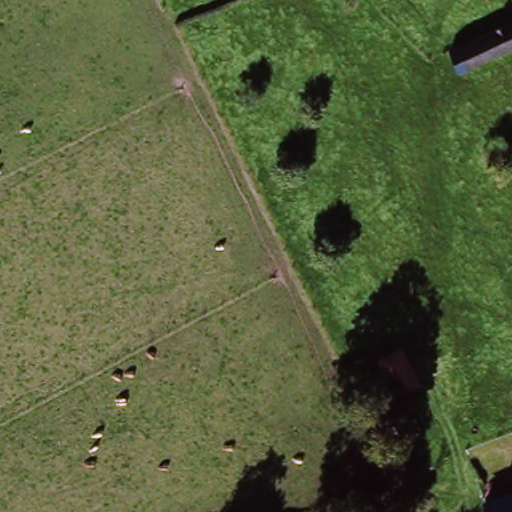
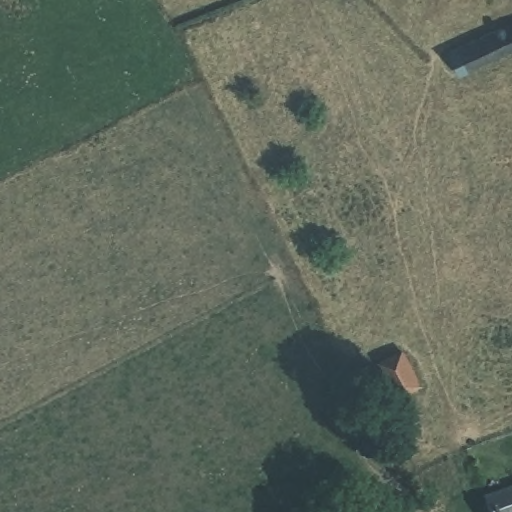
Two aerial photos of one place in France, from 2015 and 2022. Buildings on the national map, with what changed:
unchanged [(512,22),(512,52),(467,77),(454,54),(512,22)]
unchanged [(413,387),(401,392),(393,396),(379,366),(385,362),(398,356),(413,387)]
unchanged [(512,497),(512,512),(491,512),(490,508),(512,497)]

